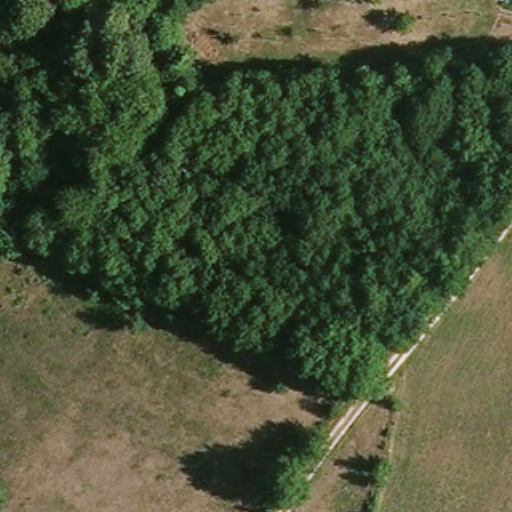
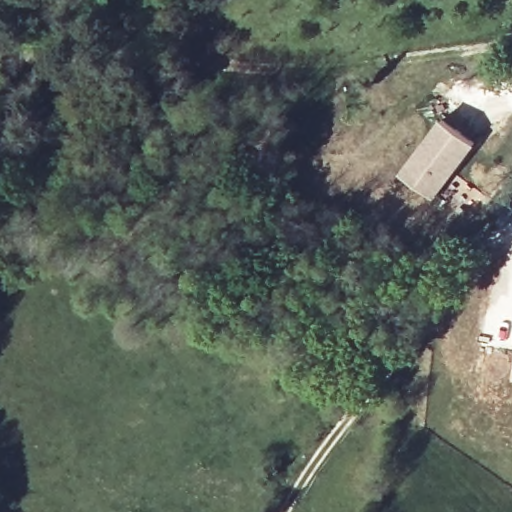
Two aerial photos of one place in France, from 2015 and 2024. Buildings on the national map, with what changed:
new [(442,122),(473,147),(432,199),(400,175),(442,122)]

